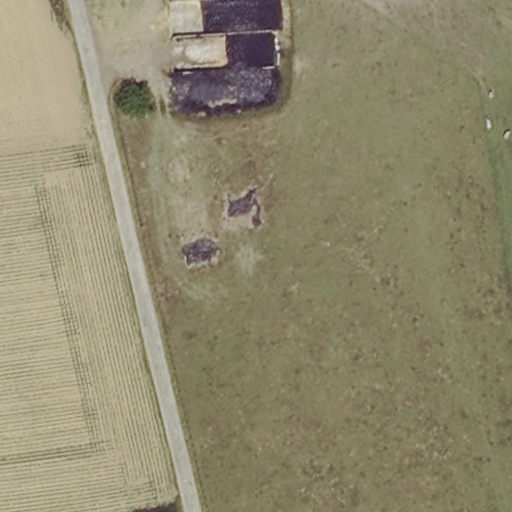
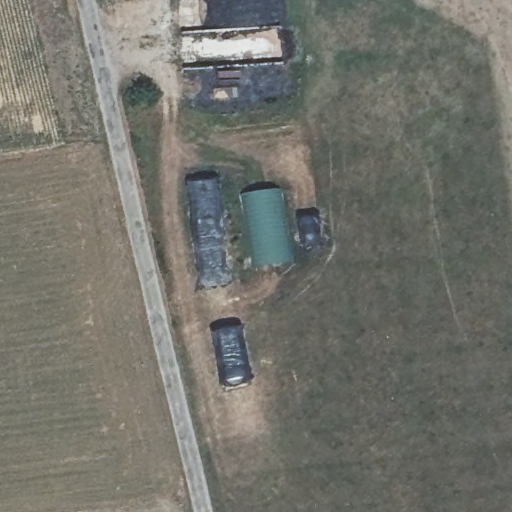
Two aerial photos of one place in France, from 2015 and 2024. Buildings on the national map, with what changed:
new [(255,267),(245,195),(280,191),(290,263),(255,267)]

